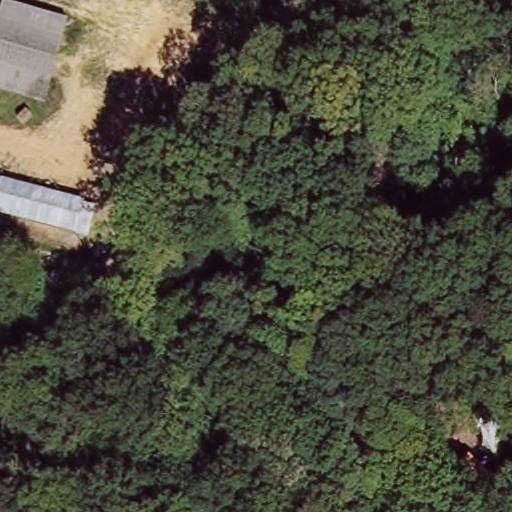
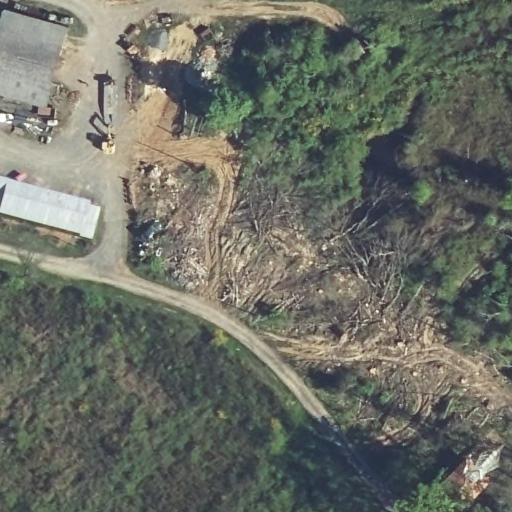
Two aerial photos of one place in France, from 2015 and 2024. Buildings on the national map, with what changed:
unchanged [(9,4),(69,23),(63,41),(3,22),(9,4)]
unchanged [(0,58),(0,30),(3,22),(63,41),(52,76),(0,58)]
unchanged [(45,97),(0,83),(0,58),(52,76),(45,97)]
unchanged [(324,102),(311,80),(320,75),(333,96),(324,102)]
unchanged [(101,207),(94,242),(0,219),(0,179),(101,207)]

